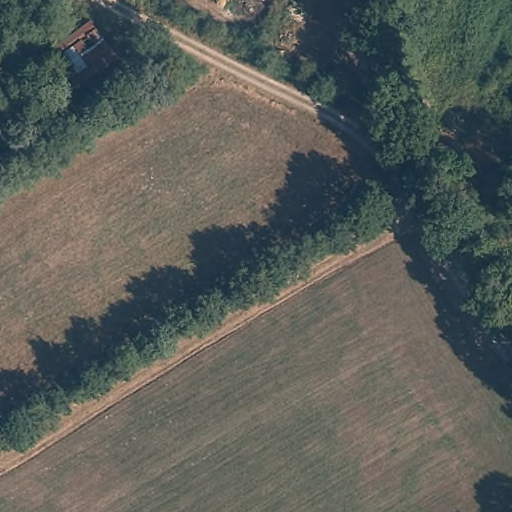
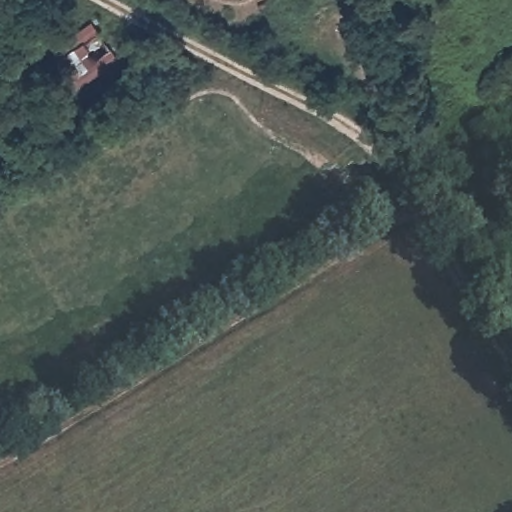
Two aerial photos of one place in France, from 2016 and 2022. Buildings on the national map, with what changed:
unchanged [(122,61),(76,92),(47,49),(93,18),(122,61)]

